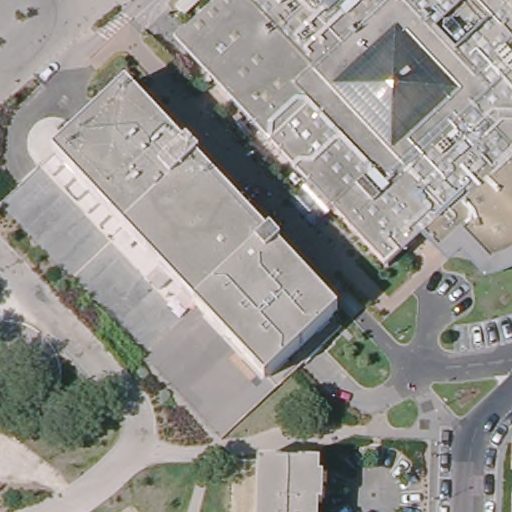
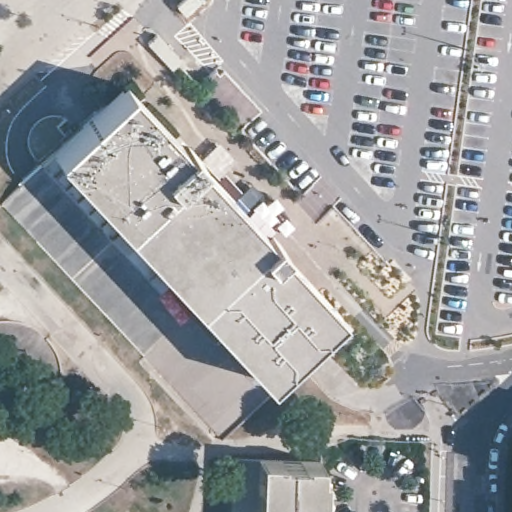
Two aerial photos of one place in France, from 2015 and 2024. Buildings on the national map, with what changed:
demolished [(416,239),(388,265),(175,39),(216,0),(512,0),(512,148),(424,231),(416,239)]
new [(240,130),(201,88),(223,68),(261,110),(240,130)]
unchanged [(58,153),(132,82),(340,308),(271,376),(282,386),(222,437),(3,205),(58,153)]
demolished [(504,255),(492,260),(462,229),(441,249),(424,231),(512,148),(512,250),(511,251),(504,255)]
demolished [(488,278),(465,256),(448,267),(416,239),(424,231),(441,249),(462,229),(492,260),(504,255),(511,251),(512,250),(512,271),(508,272),(488,278)]
unchanged [(508,439),(512,435),(512,465),(507,465),(508,439)]
unchanged [(237,457),(323,457),(323,469),(330,469),(330,498),(322,497),(322,512),(236,512),(237,457)]
unchanged [(507,495),(512,495),(512,512),(507,512),(507,495)]

